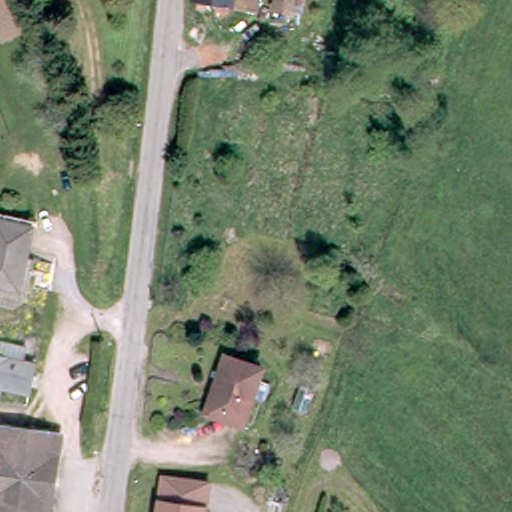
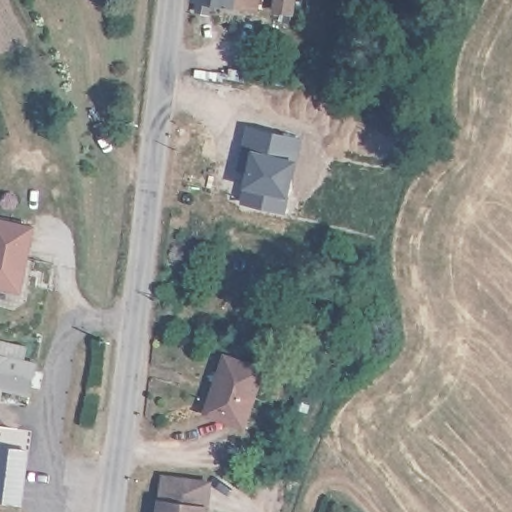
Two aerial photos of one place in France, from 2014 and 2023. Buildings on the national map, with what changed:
unchanged [(251,10),(203,1),(202,9),(193,7),(194,0),(253,0),(251,10)]
unchanged [(291,14),(275,10),(277,0),(293,0),(291,14)]
unchanged [(432,77),(426,90),(418,85),(424,73),(432,77)]
new [(301,140),(284,211),(243,202),(251,170),(241,168),(244,150),(255,152),(261,130),(301,140)]
unchanged [(19,290),(0,286),(0,221),(33,228),(19,290)]
unchanged [(5,387),(0,409),(0,348),(1,340),(31,347),(28,362),(42,365),(35,394),(5,387)]
unchanged [(203,408),(222,352),(258,364),(254,375),(266,378),(261,395),(249,391),(240,420),(203,408)]
unchanged [(314,390),(303,416),(290,410),(301,385),(314,390)]
unchanged [(0,445),(3,427),(67,435),(64,456),(0,445)]
unchanged [(57,512),(0,512),(0,445),(64,456),(57,512)]
unchanged [(206,505),(205,512),(158,512),(159,498),(159,473),(210,480),(206,505)]

